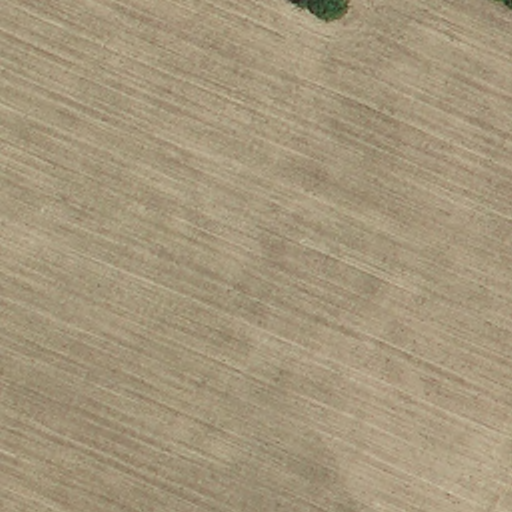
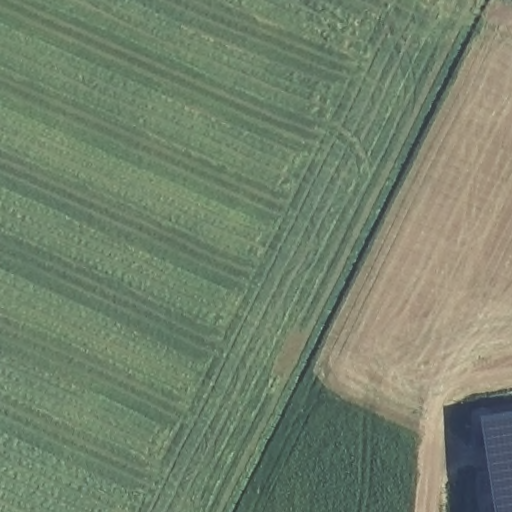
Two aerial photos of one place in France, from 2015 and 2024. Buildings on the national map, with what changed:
new [(512,414),(512,512),(496,512),(481,418),(512,414)]

